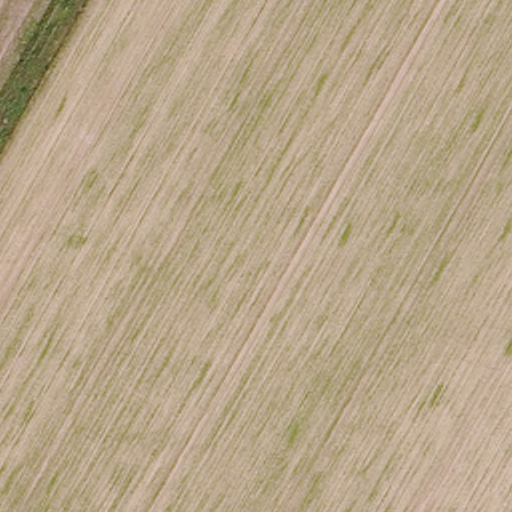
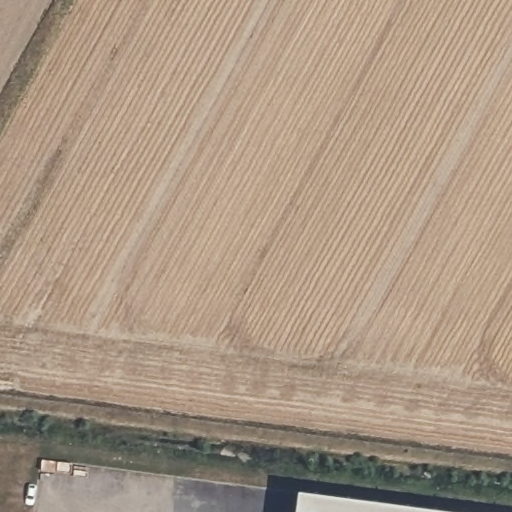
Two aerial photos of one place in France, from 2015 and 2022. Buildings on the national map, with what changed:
new [(300,493),(449,512),(298,512),(300,493)]

